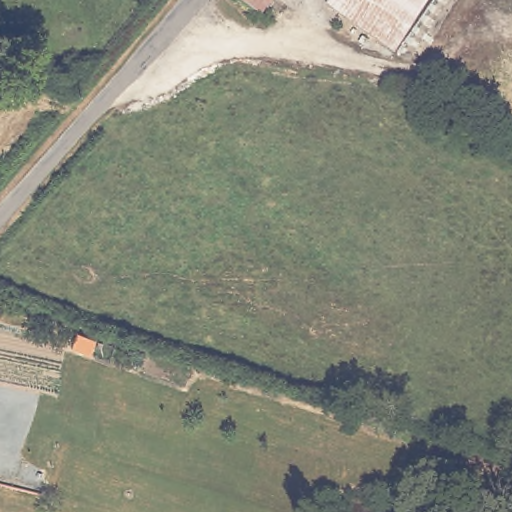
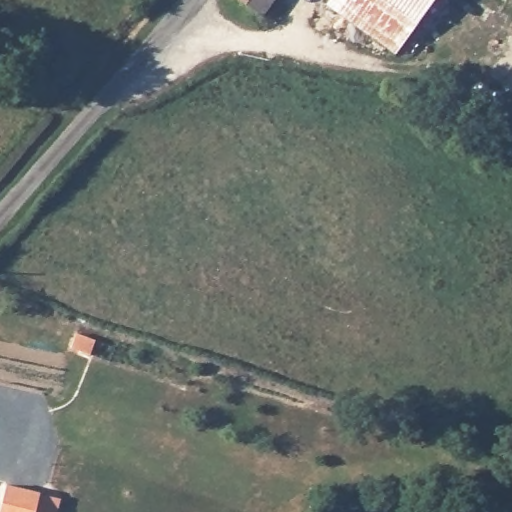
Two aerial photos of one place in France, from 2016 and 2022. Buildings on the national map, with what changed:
unchanged [(272,5),(262,0),(274,0),(272,5)]
unchanged [(341,0),(429,0),(409,38),(341,0)]
new [(1,512),(9,483),(43,492),(63,497),(59,512),(1,512)]

